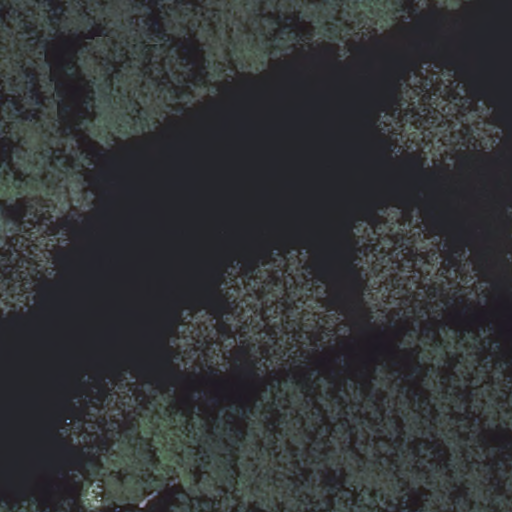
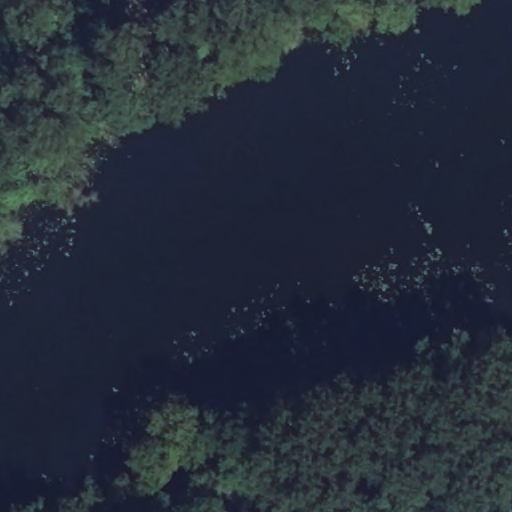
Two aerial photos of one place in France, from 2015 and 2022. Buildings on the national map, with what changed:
unchanged [(140,512),(119,512),(135,503),(140,512)]

